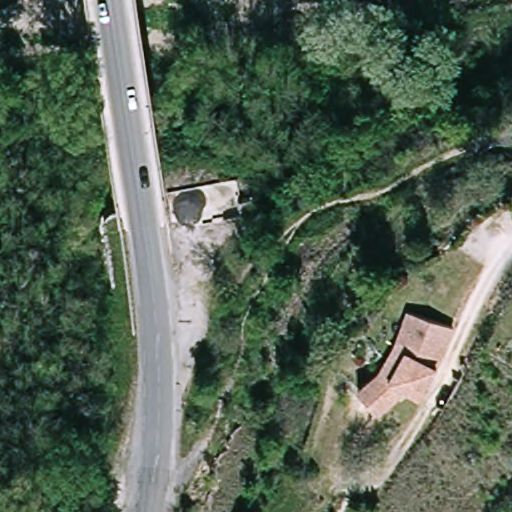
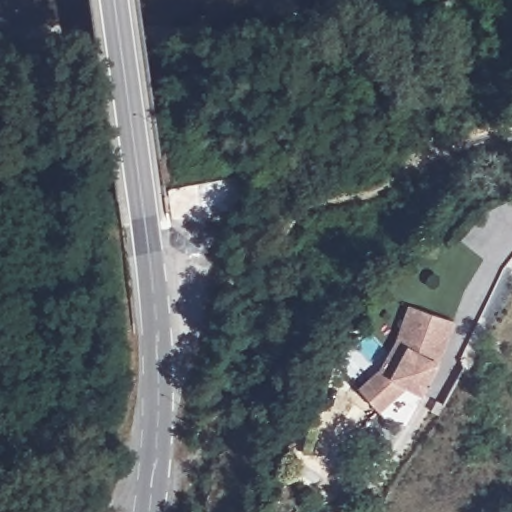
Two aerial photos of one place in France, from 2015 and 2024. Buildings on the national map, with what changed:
unchanged [(417,300),(461,318),(452,338),(444,358),(433,382),(426,392),(415,385),(388,415),(365,393),(383,372),(401,337),(417,300)]

